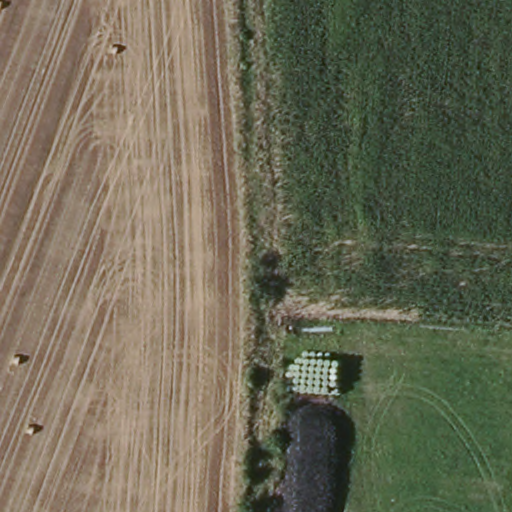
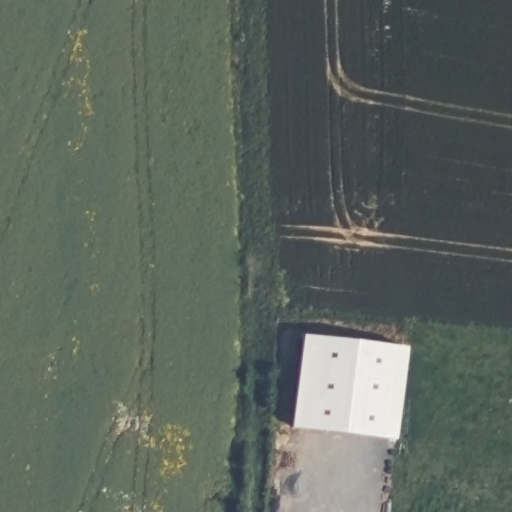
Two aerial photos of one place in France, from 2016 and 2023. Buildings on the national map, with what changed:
new [(405,355),(395,450),(291,441),(302,345),(405,355)]

